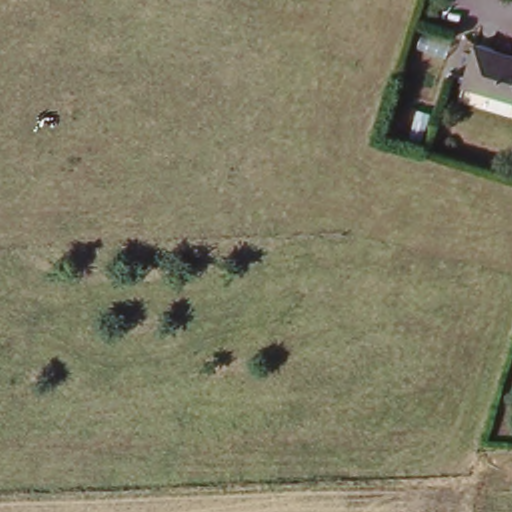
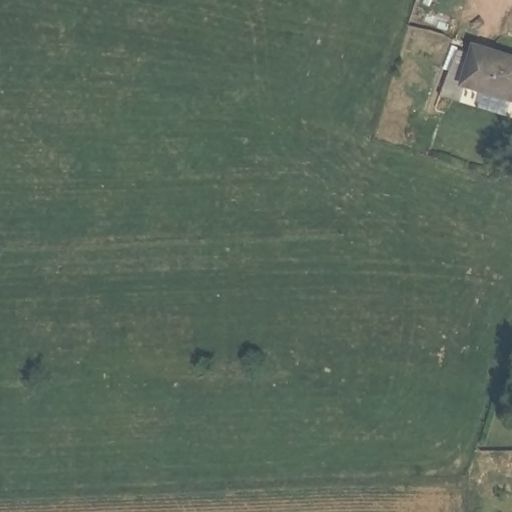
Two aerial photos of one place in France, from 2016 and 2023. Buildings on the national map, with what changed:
unchanged [(512,94),(468,80),(479,44),(512,52),(512,94)]

